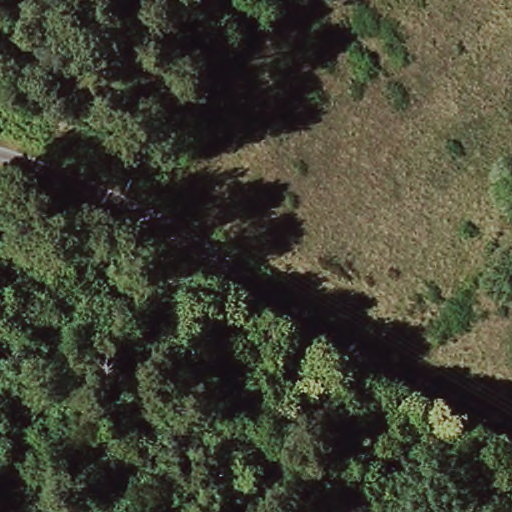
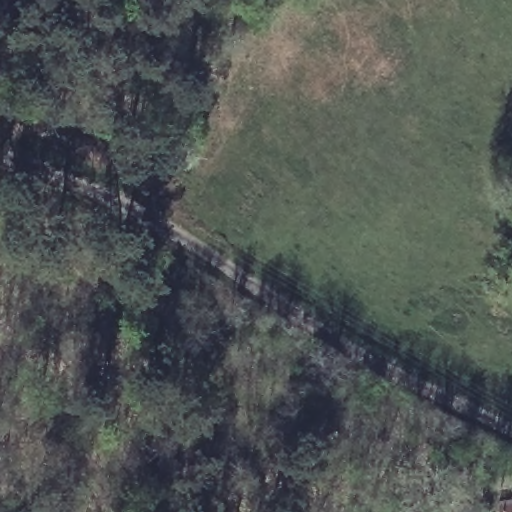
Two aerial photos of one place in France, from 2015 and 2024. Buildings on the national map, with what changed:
unchanged [(501,498),(512,497),(512,512),(502,512),(501,498)]

